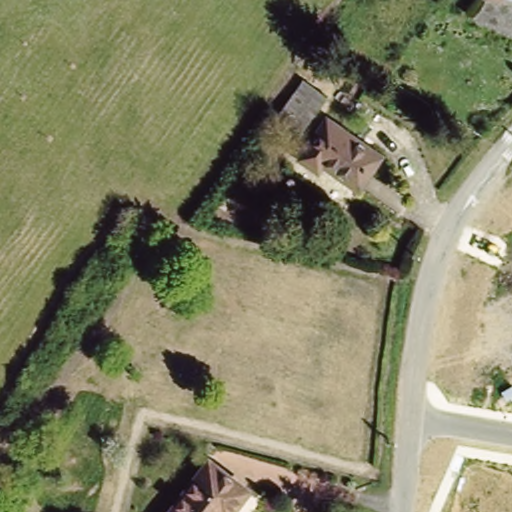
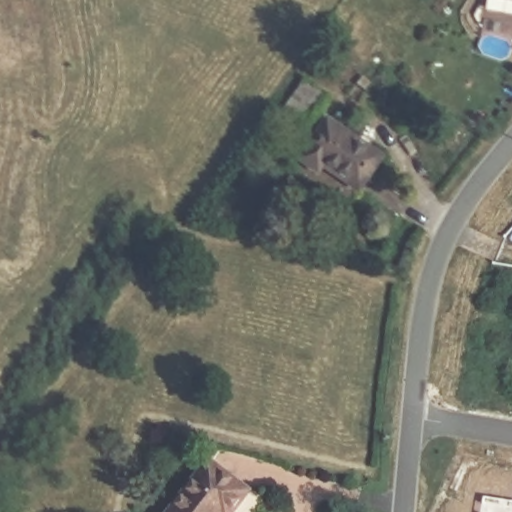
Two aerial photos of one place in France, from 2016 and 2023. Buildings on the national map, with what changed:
unchanged [(330,111),(386,148),(364,180),(327,156),(324,162),(305,149),(330,111)]
unchanged [(232,511),(229,508),(226,512),(173,512),(214,457),(251,484),(232,511)]
new [(487,499),(512,503),(512,512),(485,512),(487,499)]

